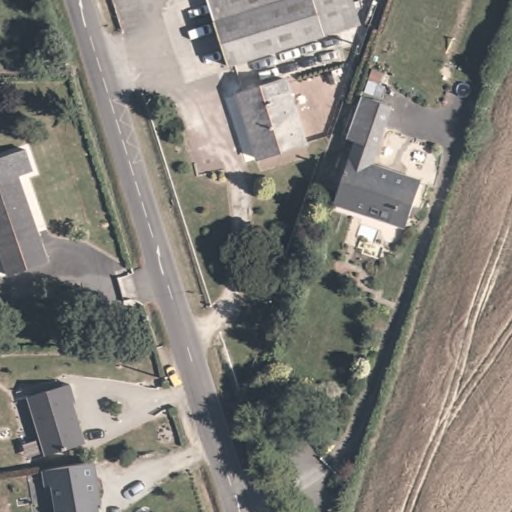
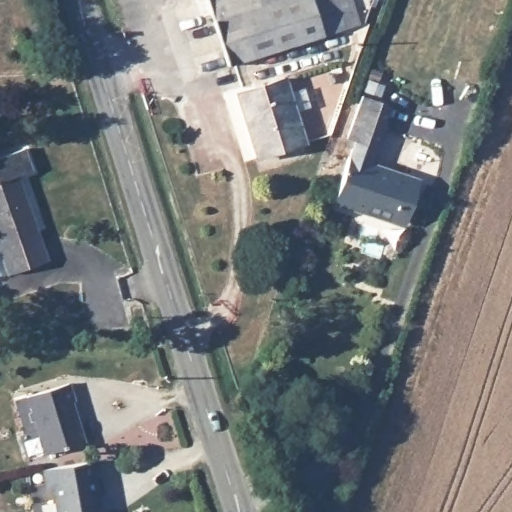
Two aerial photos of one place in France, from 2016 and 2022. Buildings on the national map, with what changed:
unchanged [(216,0),(360,0),(367,21),(235,62),(216,0)]
unchanged [(259,153),(239,92),(288,76),(307,138),(259,153)]
unchanged [(378,163),(428,180),(416,220),(403,216),(399,223),(367,213),(369,206),(342,196),(358,141),(351,137),(363,96),(394,105),(378,163)]
unchanged [(0,156),(24,147),(33,169),(19,174),(47,257),(11,272),(0,241),(0,156)]
unchanged [(31,393),(75,381),(80,397),(75,400),(89,441),(49,452),(31,393)]
unchanged [(100,498),(96,499),(98,512),(56,512),(53,491),(46,491),(44,475),(94,467),(100,498)]

